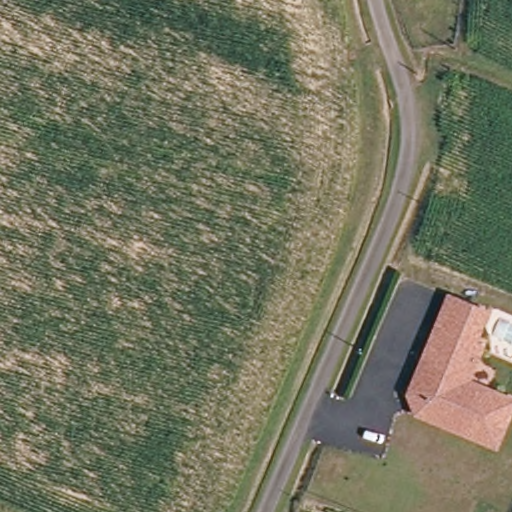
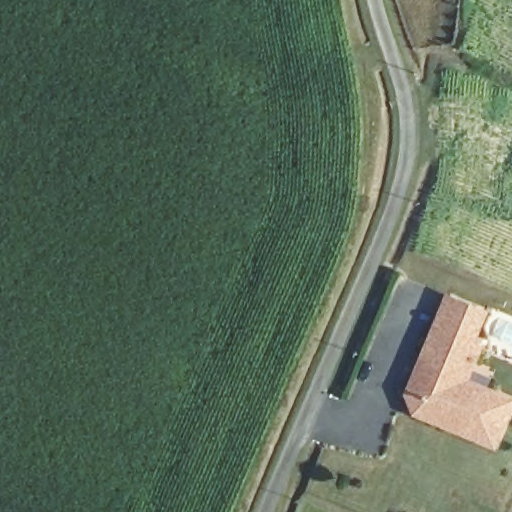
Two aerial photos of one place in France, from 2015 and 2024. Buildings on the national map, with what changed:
unchanged [(481,342),(467,377),(512,396),(512,400),(496,440),(461,426),(417,408),(410,389),(422,360),(437,324),(481,342)]

